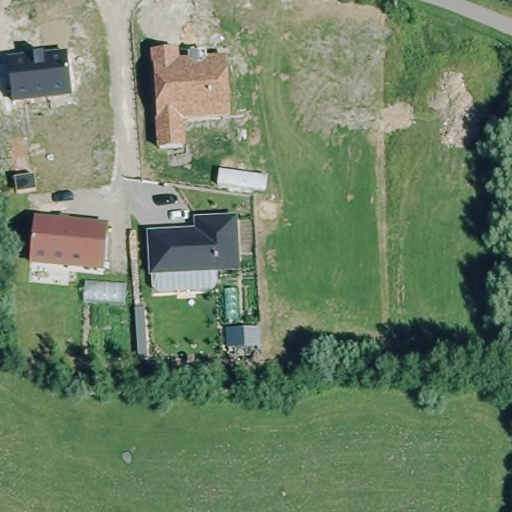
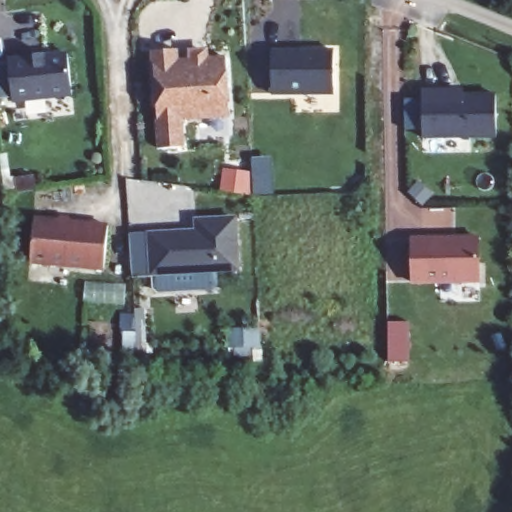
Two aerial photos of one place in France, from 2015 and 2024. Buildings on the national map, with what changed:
unchanged [(179,50),(180,64),(225,59),(230,117),(185,120),(186,147),(159,150),(153,52),(179,50)]
new [(275,50),(305,50),(305,51),(337,50),(338,93),(276,94),(275,50)]
unchanged [(72,97),(13,104),(8,58),(67,52),(72,97)]
new [(426,89),(442,89),(441,94),(500,92),(501,135),(427,136),(426,89)]
unchanged [(108,226),(102,275),(30,267),(35,217),(108,226)]
unchanged [(193,230),(193,221),(237,219),(240,273),(148,277),(145,234),(193,230)]
new [(483,278),(415,280),(415,236),(482,235),(483,278)]

